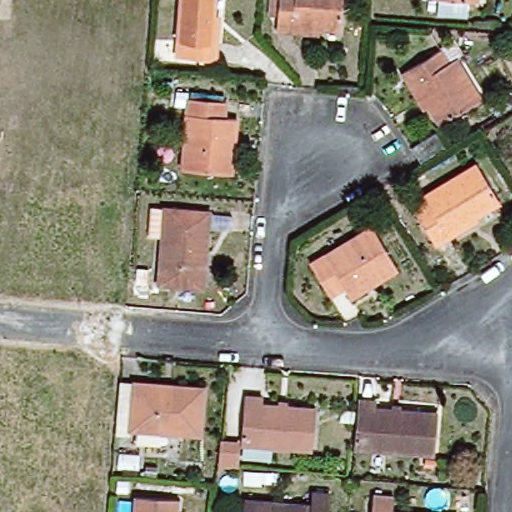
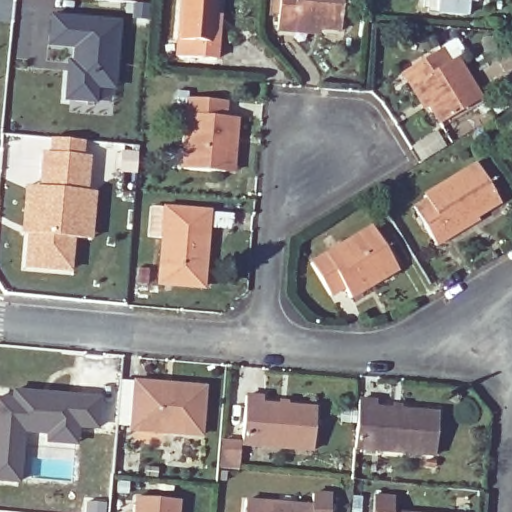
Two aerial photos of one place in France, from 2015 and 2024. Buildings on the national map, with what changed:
unchanged [(210,39),(216,40),(215,57),(175,54),(179,0),(212,0),(210,39)]
unchanged [(332,27),(270,21),(273,0),(335,0),(332,27)]
unchanged [(483,2),(457,0),(484,0),(483,2)]
new [(90,90),(89,105),(59,102),(61,73),(66,73),(69,50),(43,47),(45,18),(114,25),(109,75),(107,91),(90,90)]
unchanged [(447,62),(456,57),(480,96),(437,122),(407,71),(437,50),(447,62)]
unchanged [(228,102),(227,115),(237,116),(232,173),(185,170),(191,99),(228,102)]
new [(40,150),(47,150),(48,137),(85,140),(84,154),(91,155),(88,190),(36,185),(40,150)]
unchanged [(497,199),(431,239),(409,206),(423,196),(422,191),(472,161),(497,199)]
new [(24,185),(36,185),(88,190),(95,191),(91,240),(74,239),(24,235),(20,235),(24,185)]
unchanged [(205,211),(200,284),(158,280),(162,209),(205,211)]
unchanged [(395,267),(350,294),(343,285),(330,290),(311,261),(370,225),(395,267)]
new [(24,235),(74,239),(72,272),(21,269),(24,235)]
unchanged [(144,388),(196,392),(192,435),(122,430),(126,382),(143,382),(144,388)]
new [(0,481),(0,398),(10,399),(11,389),(100,396),(97,428),(77,428),(75,445),(45,442),(45,430),(25,430),(19,482),(0,481)]
unchanged [(265,402),(314,407),(311,449),(239,443),(244,392),(262,394),(265,402)]
unchanged [(375,399),(375,406),(438,411),(435,450),(355,444),(360,398),(375,399)]
unchanged [(243,512),(244,502),(311,507),(313,495),(330,497),(328,512),(243,512)]
unchanged [(370,512),(371,498),(391,500),(391,512),(370,512)]
unchanged [(128,512),(129,500),(172,503),(172,512),(128,512)]

